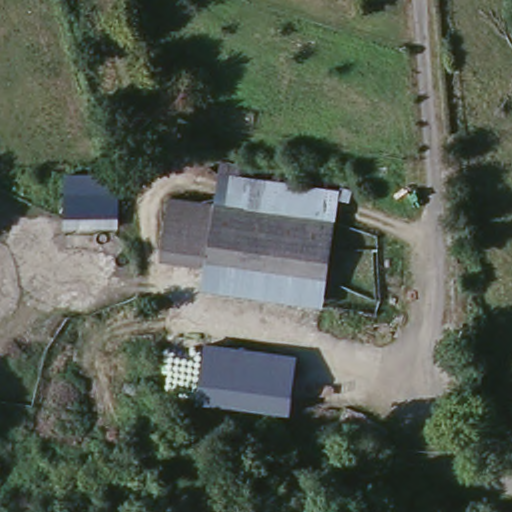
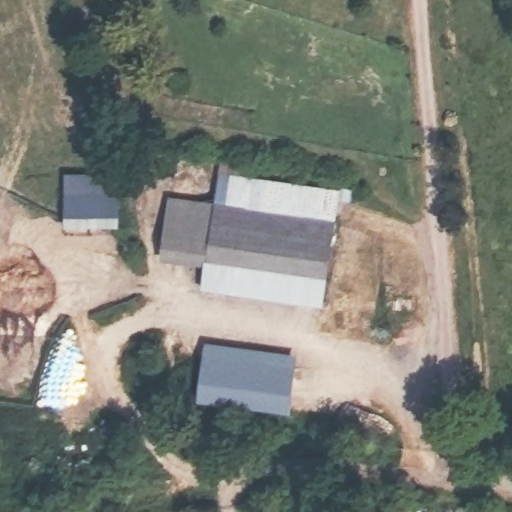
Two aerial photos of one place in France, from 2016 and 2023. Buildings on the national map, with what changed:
unchanged [(213,166),(334,180),(332,210),(209,196),(213,166)]
unchanged [(120,229),(67,228),(66,179),(119,177),(120,229)]
unchanged [(209,196),(203,263),(156,258),(162,191),(209,196)]
unchanged [(332,210),(322,297),(201,283),(203,263),(209,196),(332,210)]
unchanged [(292,414),(198,402),(205,345),(297,356),(292,414)]

